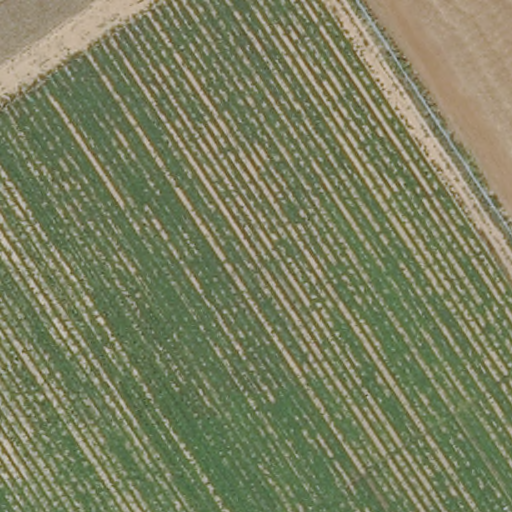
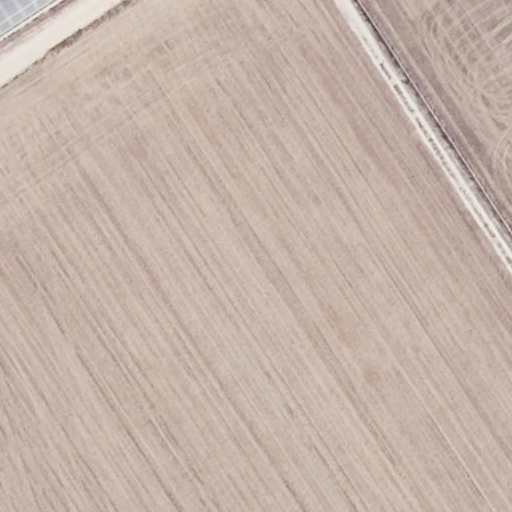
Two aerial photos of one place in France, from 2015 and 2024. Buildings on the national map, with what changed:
new [(0,0),(66,0),(0,43),(0,0)]

